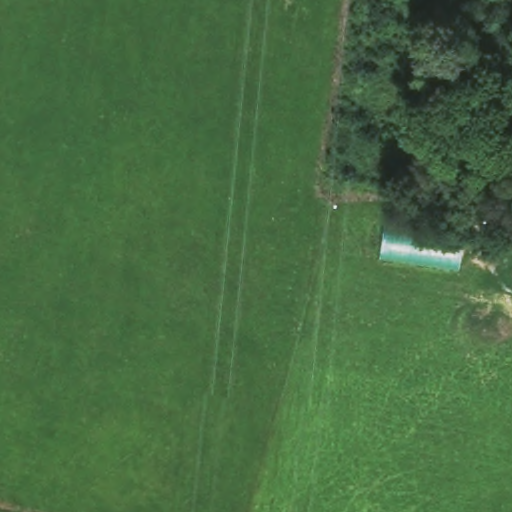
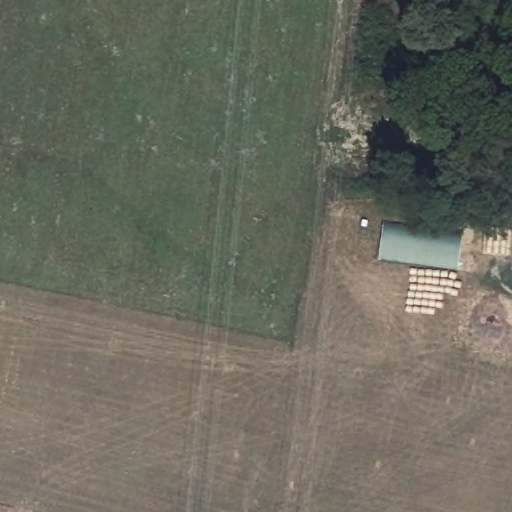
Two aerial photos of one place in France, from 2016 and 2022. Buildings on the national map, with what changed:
unchanged [(380,255),(385,224),(461,235),(458,266),(380,255)]

